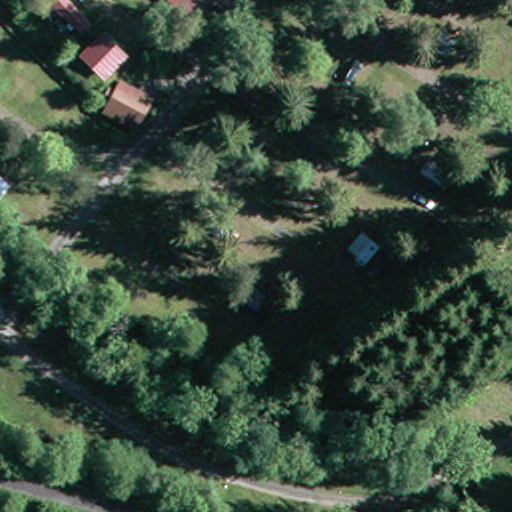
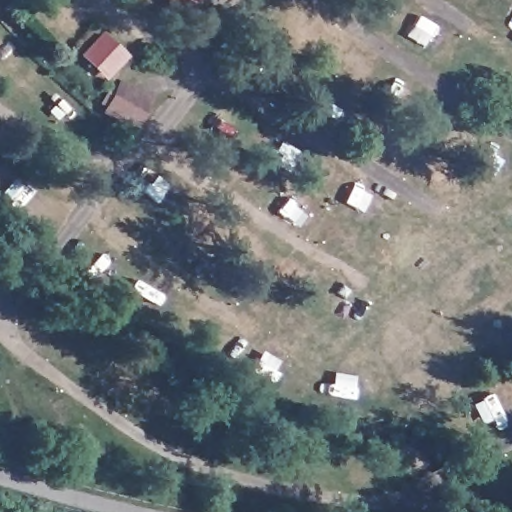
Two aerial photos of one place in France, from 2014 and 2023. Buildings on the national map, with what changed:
unchanged [(170,0),(207,0),(196,15),(170,0)]
unchanged [(119,54),(101,72),(81,54),(99,36),(119,54)]
unchanged [(170,91),(120,118),(103,96),(156,67),(170,91)]
unchanged [(476,408),(504,393),(496,379),(512,371),(512,424),(488,437),(476,408)]

